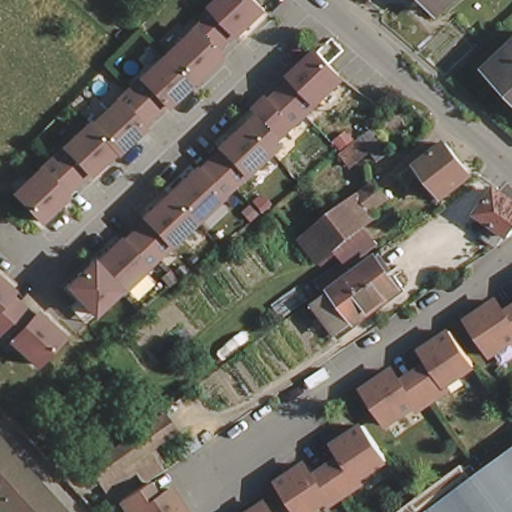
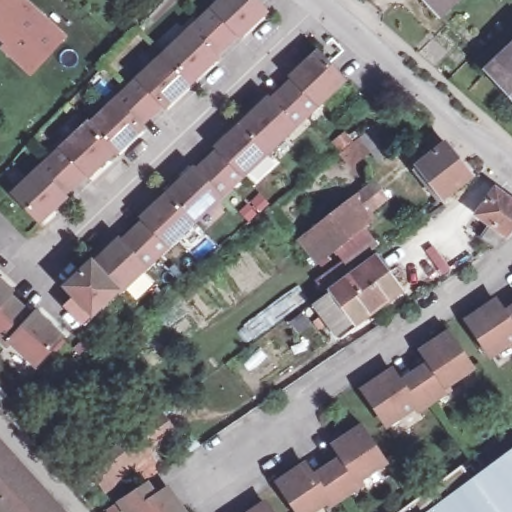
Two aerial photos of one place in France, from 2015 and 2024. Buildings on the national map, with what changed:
new [(32,77),(0,49),(0,48),(4,44),(0,40),(0,0),(29,0),(68,37),(32,77)]
unchanged [(221,0),(267,0),(272,5),(245,30),(243,27),(232,38),(207,13),(221,0)]
unchanged [(445,10),(437,0),(456,0),(445,10)]
unchanged [(207,13),(232,38),(220,49),(222,52),(196,76),(170,48),(207,13)]
unchanged [(170,48),(196,76),(170,101),(168,98),(156,109),(132,84),(170,48)]
unchanged [(295,77),(292,75),(318,51),(330,63),(345,79),(307,114),(283,88),(295,77)]
unchanged [(512,52),(512,93),(492,70),(512,52)]
unchanged [(132,84),(156,109),(145,120),(147,123),(121,147),(119,145),(111,136),(95,119),(132,84)]
unchanged [(268,97),(271,100),(283,88),(307,114),(270,150),(243,121),(268,97)]
unchanged [(93,118),(95,119),(111,136),(119,145),(93,170),(91,168),(80,179),(67,165),(55,153),(93,118)]
unchanged [(220,148),(217,146),(243,121),(270,150),(232,185),(207,159),(220,148)]
unchanged [(368,141),(382,131),(395,147),(382,158),(368,141)]
unchanged [(445,194),(425,167),(455,146),(475,172),(445,194)]
unchanged [(68,190),(70,192),(45,217),(18,189),(55,153),(67,165),(80,179),(68,190)]
unchanged [(193,168),(196,170),(207,159),(232,185),(194,220),(185,211),(167,192),(193,168)]
unchanged [(331,248),(317,230),(400,166),(411,180),(382,202),(385,206),(377,213),(331,248)]
unchanged [(477,236),(488,222),(476,213),(494,189),(512,201),(512,224),(506,232),(503,231),(492,245),(477,236)]
unchanged [(144,219),(142,217),(167,192),(185,211),(194,220),(156,256),(132,230),(144,219)]
unchanged [(377,213),(397,238),(350,272),(331,248),(377,213)]
unchanged [(118,239),(120,241),(132,230),(156,256),(118,291),(117,290),(117,289),(112,284),(92,263),(118,239)]
unchanged [(309,316),(386,254),(410,284),(332,343),(309,316)]
unchanged [(67,306),(73,300),(76,297),(65,285),(90,261),(92,262),(92,263),(112,284),(117,289),(91,313),(81,321),(67,306)]
unchanged [(15,292),(11,295),(23,306),(0,330),(0,278),(15,292)]
unchanged [(503,312),(512,306),(512,338),(488,354),(465,319),(495,300),(503,312)]
unchanged [(23,306),(35,317),(38,314),(63,338),(37,366),(12,342),(9,346),(0,337),(0,330),(23,306)]
unchanged [(427,362),(420,350),(448,330),(462,351),(472,365),(443,384),(447,388),(431,399),(413,372),(427,362)]
unchanged [(390,369),(398,382),(413,372),(431,399),(415,409),(412,405),(384,424),(361,389),(390,369)]
unchanged [(163,419),(183,452),(110,497),(90,464),(163,419)]
unchanged [(342,456),(334,443),(361,425),(385,460),(356,479),(359,483),(343,494),(325,467),(342,456)]
unchanged [(0,512),(0,449),(60,512),(0,512)]
unchanged [(469,480),(512,449),(512,512),(401,512),(460,468),(469,480)]
unchanged [(311,477),(325,467),(343,494),(327,504),(325,500),(306,512),(292,512),(273,484),(303,464),(311,477)]
unchanged [(152,501),(164,492),(177,512),(121,512),(115,504),(142,486),(152,501)]
unchanged [(273,512),(254,512),(267,503),(273,512)]

